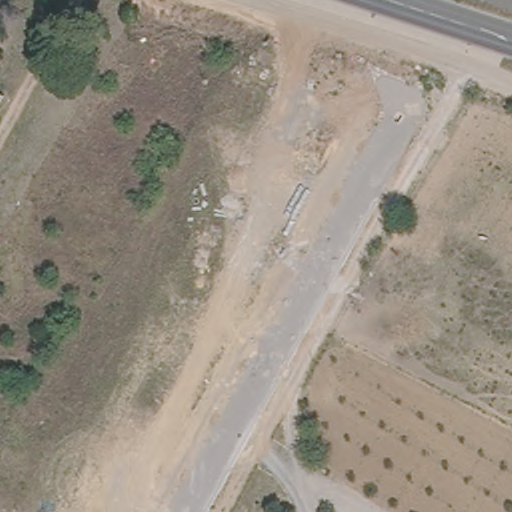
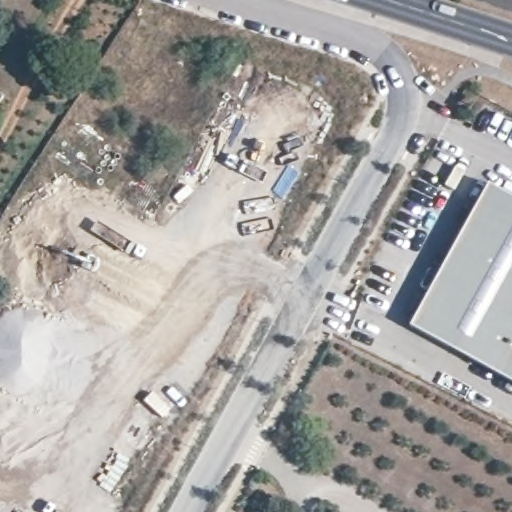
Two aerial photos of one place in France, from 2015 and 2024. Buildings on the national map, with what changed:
unchanged [(4,96),(0,101),(0,93),(4,96)]
new [(487,181),(512,194),(512,382),(409,325),(487,181)]

